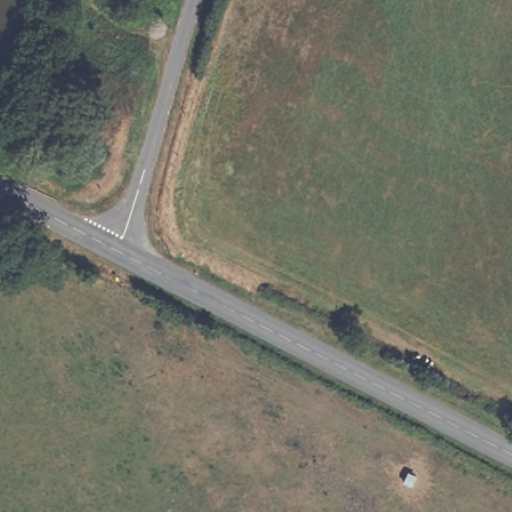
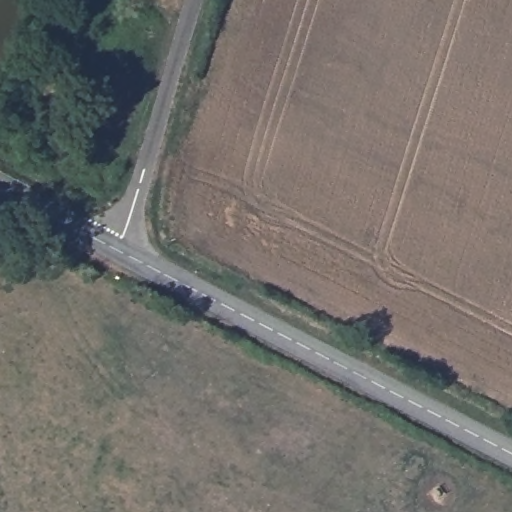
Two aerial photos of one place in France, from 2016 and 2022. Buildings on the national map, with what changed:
[]

